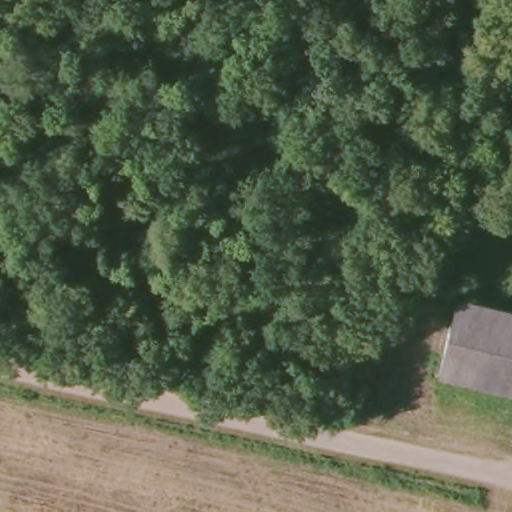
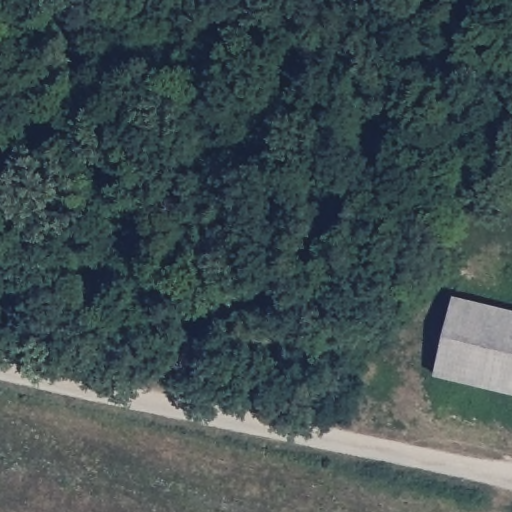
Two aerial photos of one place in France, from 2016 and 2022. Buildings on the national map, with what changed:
unchanged [(445,372),(464,295),(512,307),(512,389),(445,372)]

